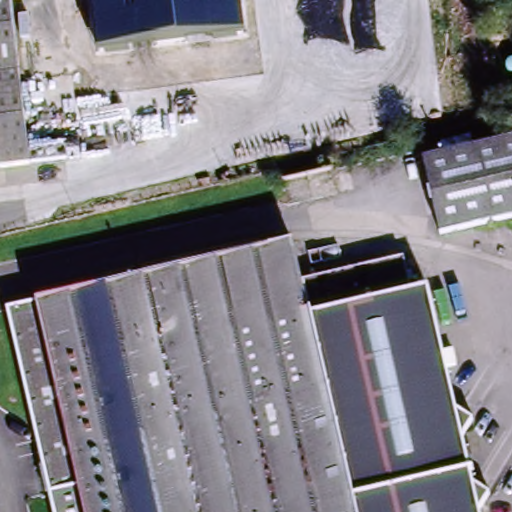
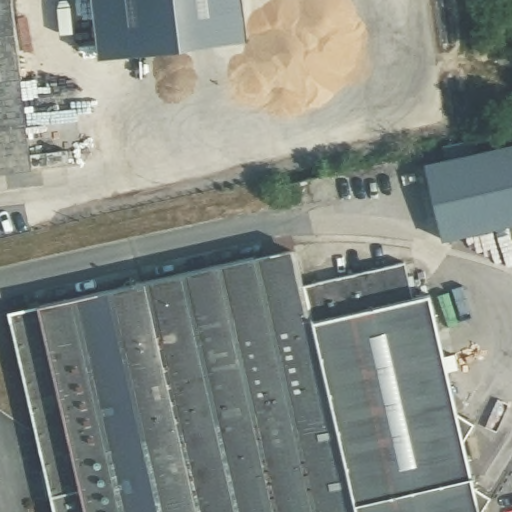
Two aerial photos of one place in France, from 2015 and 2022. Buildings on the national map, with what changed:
unchanged [(0,173),(0,0),(12,0),(32,169),(0,173)]
unchanged [(241,0),(246,38),(99,55),(93,0),(241,0)]
unchanged [(442,235),(426,168),(438,165),(449,162),(447,153),(475,147),(477,156),(512,148),(512,225),(443,241),(442,235)]
unchanged [(254,257),(255,262),(294,254),(307,307),(355,512),(53,512),(49,496),(79,490),(37,306),(254,257)]
unchanged [(431,316),(446,378),(457,375),(463,401),(452,403),(460,435),(471,440),(464,451),(476,455),(468,467),(478,512),(355,512),(307,307),(408,284),(417,320),(431,316)]
unchanged [(49,496),(47,497),(6,312),(37,306),(79,490),(49,496)]

